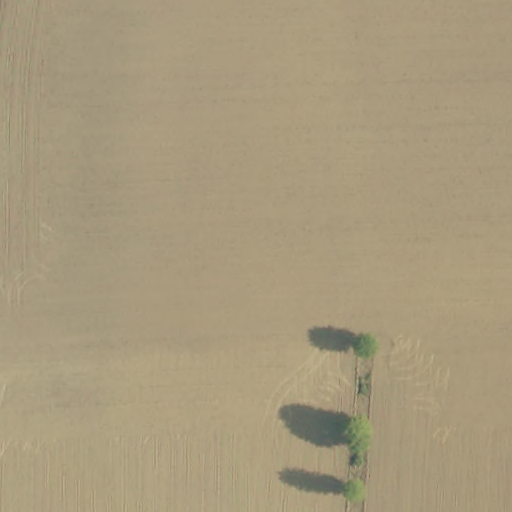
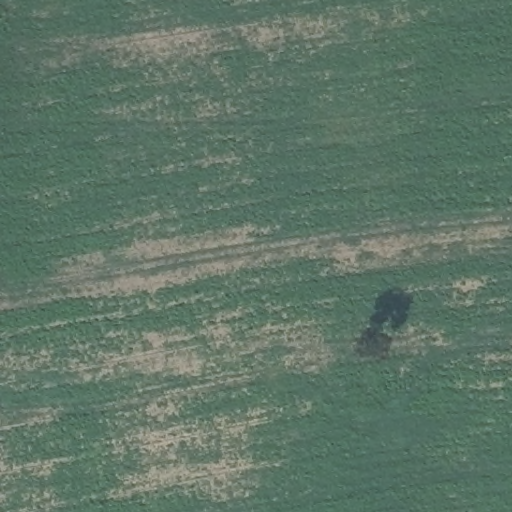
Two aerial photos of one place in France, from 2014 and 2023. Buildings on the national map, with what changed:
[]

